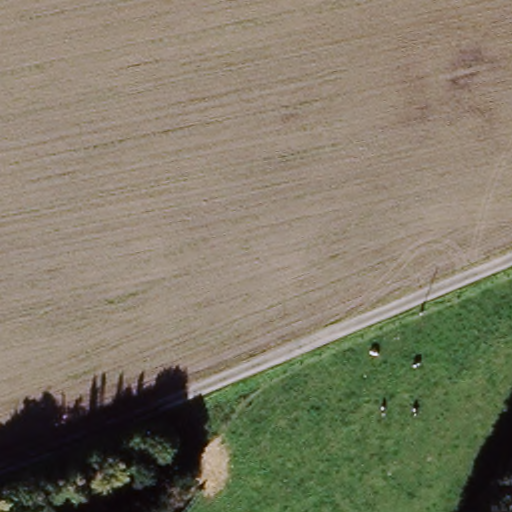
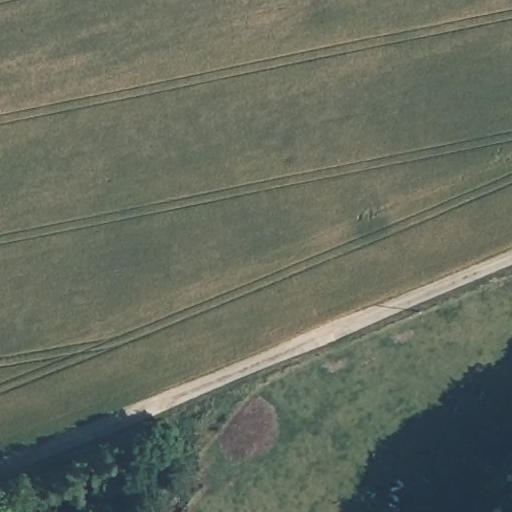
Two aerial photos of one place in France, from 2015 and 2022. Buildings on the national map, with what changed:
unchanged [(58,491),(57,512),(22,509),(22,489),(58,491)]

